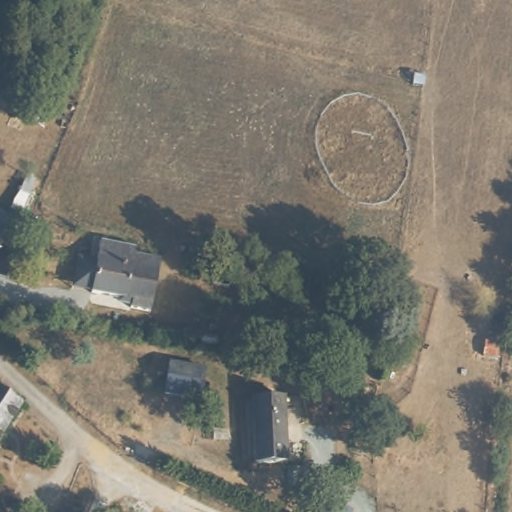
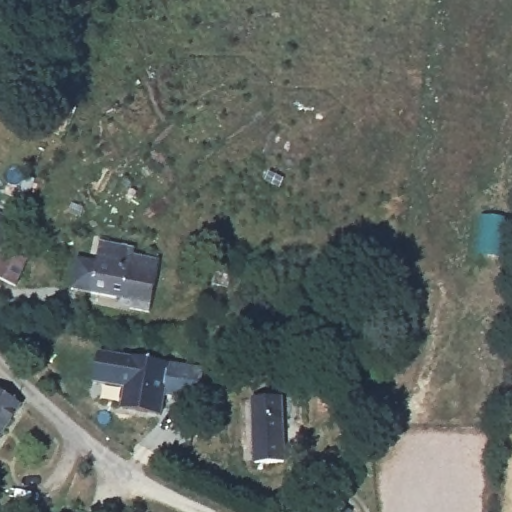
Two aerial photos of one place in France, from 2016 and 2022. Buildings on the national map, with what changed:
unchanged [(0,248),(0,211),(14,218),(0,248)]
unchanged [(82,258),(99,260),(102,239),(139,245),(138,253),(131,297),(95,290),(78,287),(82,258)]
unchanged [(27,266),(16,285),(0,278),(0,260),(4,253),(27,266)]
unchanged [(138,253),(166,257),(158,309),(137,307),(139,298),(131,297),(138,253)]
new [(205,367),(199,396),(166,390),(160,415),(120,407),(124,386),(92,381),(97,350),(131,356),(205,367)]
unchanged [(328,382),(282,373),(285,358),(330,366),(328,382)]
unchanged [(0,430),(0,393),(16,404),(0,430)]
unchanged [(240,397),(294,398),(293,462),(241,461),(240,397)]
unchanged [(84,512),(60,512),(62,505),(84,512)]

